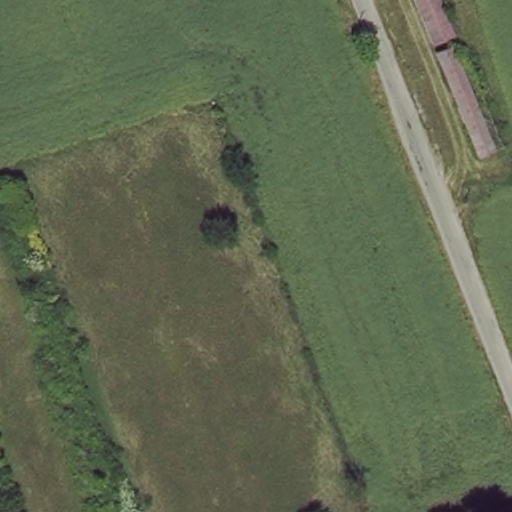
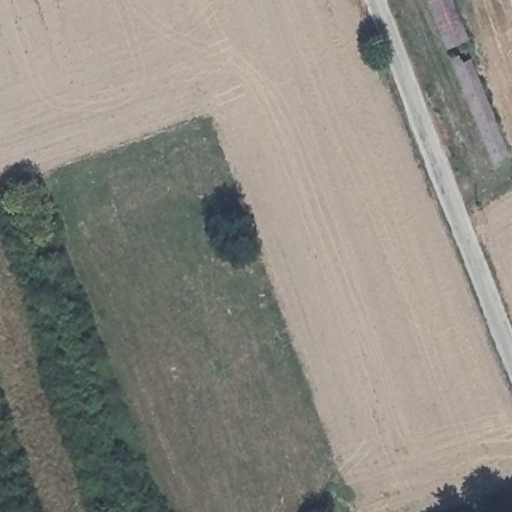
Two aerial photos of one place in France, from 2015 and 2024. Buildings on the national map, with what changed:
unchanged [(459,37),(440,45),(422,0),(444,0),(459,37)]
unchanged [(483,162),(446,64),(442,54),(462,47),(466,56),(502,155),(483,162)]

